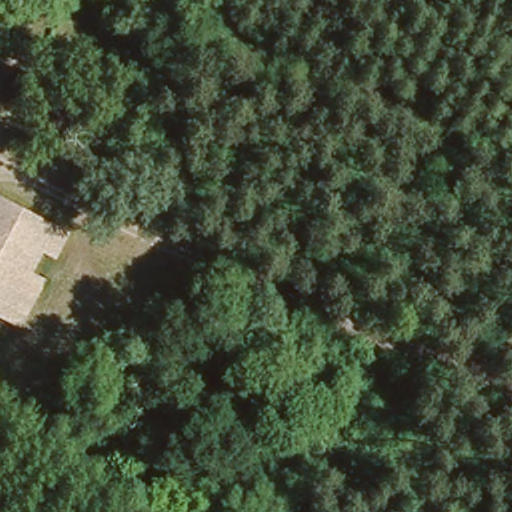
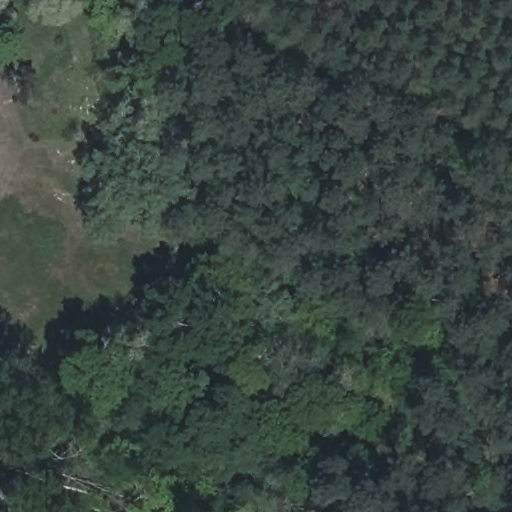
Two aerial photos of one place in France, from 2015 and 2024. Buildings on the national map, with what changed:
demolished [(59,225),(10,317),(0,312),(0,194),(59,225)]

